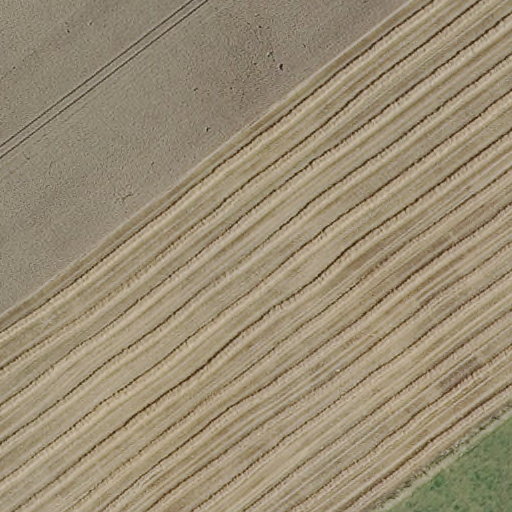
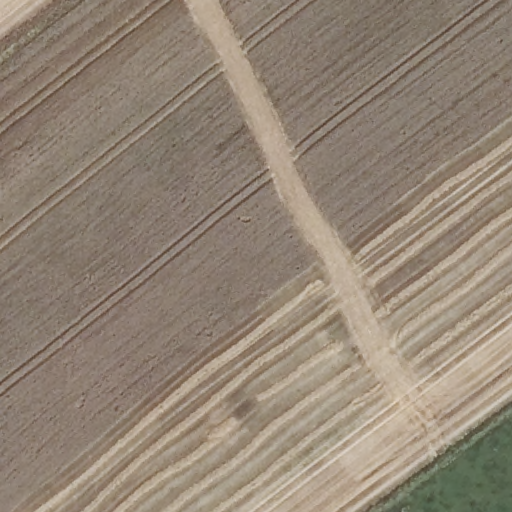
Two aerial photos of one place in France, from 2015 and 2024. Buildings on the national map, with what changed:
[]

